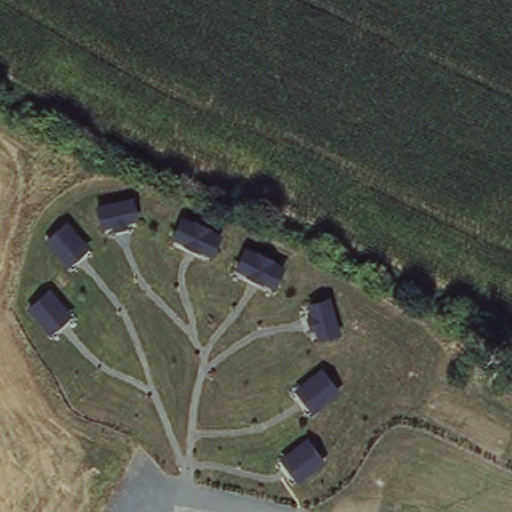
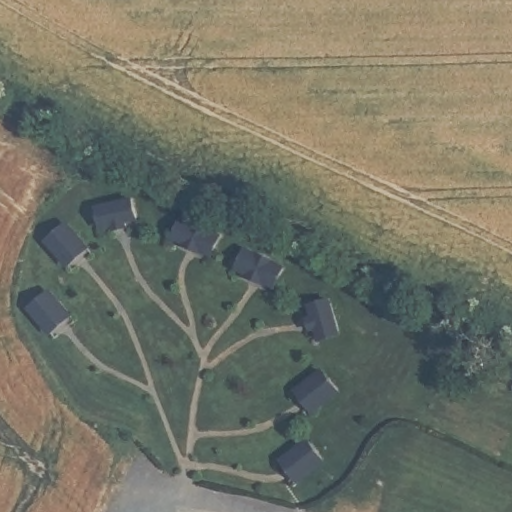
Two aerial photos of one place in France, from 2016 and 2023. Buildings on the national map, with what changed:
unchanged [(133,195),(137,218),(126,222),(127,229),(114,232),(112,226),(100,228),(98,203),(133,195)]
unchanged [(183,214),(224,230),(212,255),(174,235),(183,214)]
unchanged [(65,220),(90,245),(68,266),(47,240),(65,220)]
unchanged [(244,248),(287,268),(275,290),(235,269),(244,248)]
unchanged [(49,288),(74,315),(52,335),(28,308),(49,288)]
unchanged [(330,297),(339,334),(318,340),(314,330),(308,330),(305,317),(310,315),(306,302),(330,297)]
unchanged [(320,369),(337,391),(310,412),(293,391),(320,369)]
unchanged [(292,453),(291,449),(305,436),(325,460),(297,481),(280,460),(292,453)]

